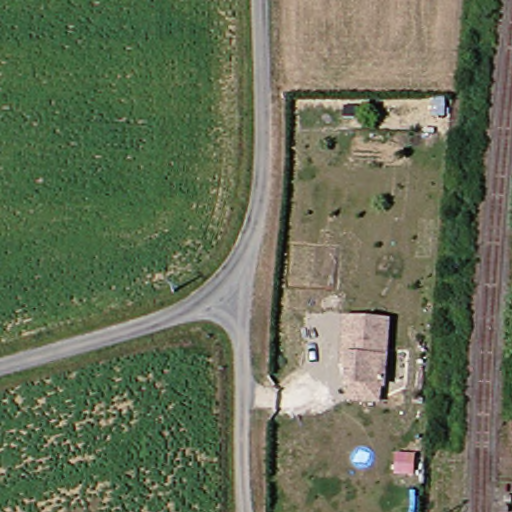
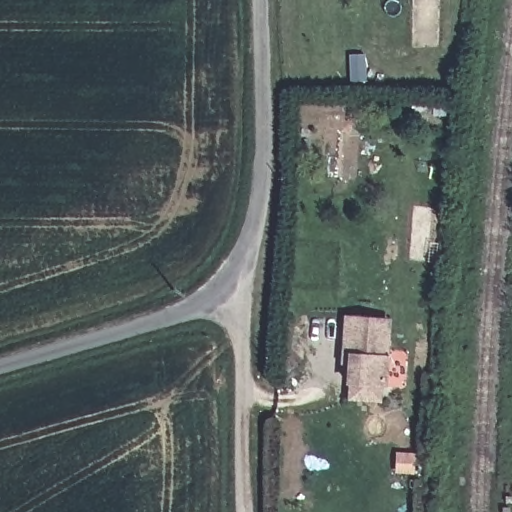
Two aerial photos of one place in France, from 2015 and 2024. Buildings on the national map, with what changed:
unchanged [(347,393),(349,380),(345,379),(349,355),(342,353),(349,317),(396,327),(385,387),(382,386),(379,400),(347,393)]
unchanged [(415,467),(413,483),(395,481),(396,465),(415,467)]

